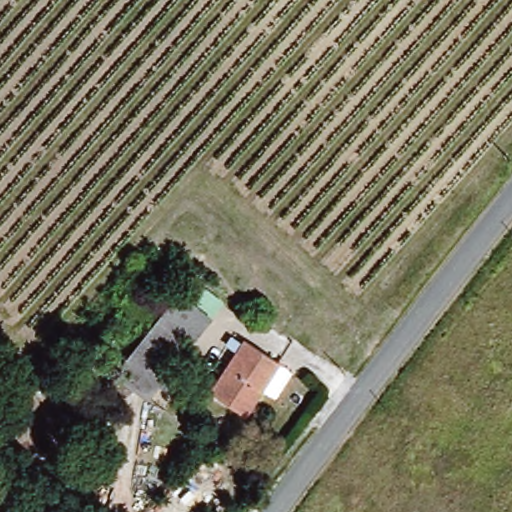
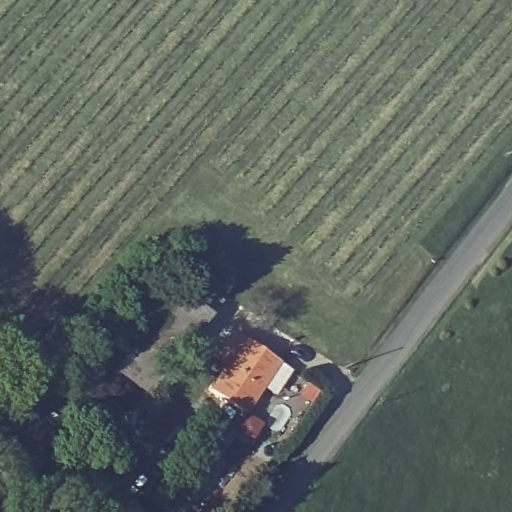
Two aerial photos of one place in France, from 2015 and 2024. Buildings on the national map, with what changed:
unchanged [(186,295),(211,321),(139,388),(114,361),(186,295)]
unchanged [(245,415),(211,391),(227,370),(219,365),(241,334),(249,341),(282,365),(245,415)]

